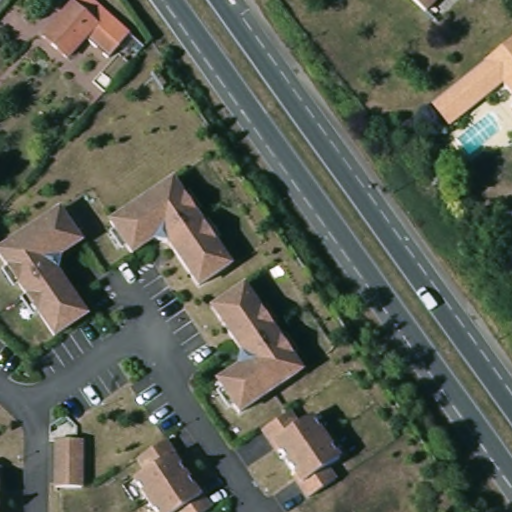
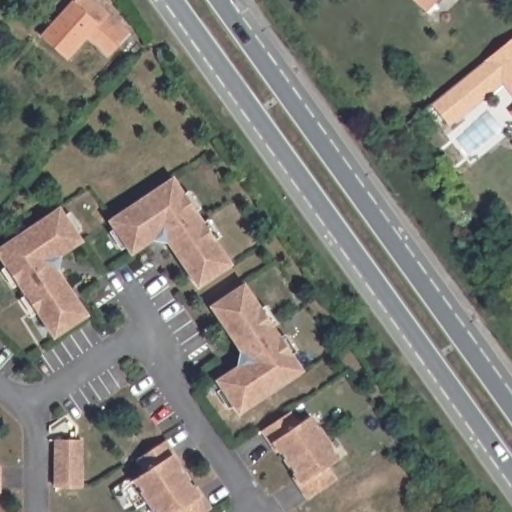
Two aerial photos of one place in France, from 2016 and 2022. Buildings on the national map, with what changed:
unchanged [(128,48),(119,40),(112,47),(90,27),(66,53),(43,32),(72,0),(98,0),(129,29),(138,37),(128,48)]
unchanged [(427,11),(415,0),(438,0),(427,11)]
unchanged [(450,128),(431,107),(470,72),(512,34),(512,72),(500,82),(450,128)]
unchanged [(512,72),(512,95),(500,82),(512,72)]
unchanged [(177,187),(211,236),(229,263),(198,285),(184,265),(167,240),(164,241),(155,240),(153,237),(131,252),(125,243),(109,220),(172,178),(177,187)]
unchanged [(79,240),(57,255),(58,258),(57,267),(54,269),(74,298),(85,314),(53,336),(51,332),(0,258),(0,248),(57,208),(79,240)]
unchanged [(239,412),(218,380),(240,365),(238,362),(240,353),(242,351),(217,313),(212,305),(243,284),(244,284),(302,370),(239,412)]
unchanged [(298,424),(311,415),(340,458),(327,467),(336,479),(309,497),(300,484),(302,482),(274,442),(272,443),(264,431),(263,429),(272,423),(290,411),(298,424)]
unchanged [(56,486),(56,436),(76,436),(81,436),(81,459),(81,487),(56,487),(56,486)]
unchanged [(138,458),(164,440),(173,452),(171,453),(200,496),(202,495),(211,507),(204,512),(157,512),(134,479),(146,470),(138,458)]

